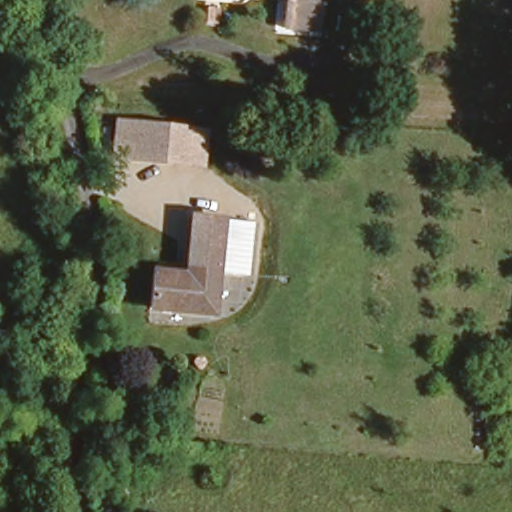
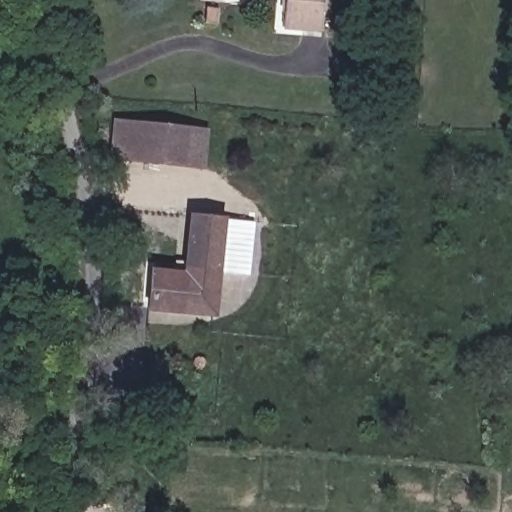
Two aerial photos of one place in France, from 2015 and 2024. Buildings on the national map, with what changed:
unchanged [(282,27),(284,0),(321,0),(318,30),(282,27)]
unchanged [(200,166),(187,165),(113,161),(114,125),(188,129),(202,129),(200,166)]
unchanged [(250,272),(217,270),(217,278),(215,313),(150,309),(152,273),(186,275),(190,215),(252,219),(250,272)]

